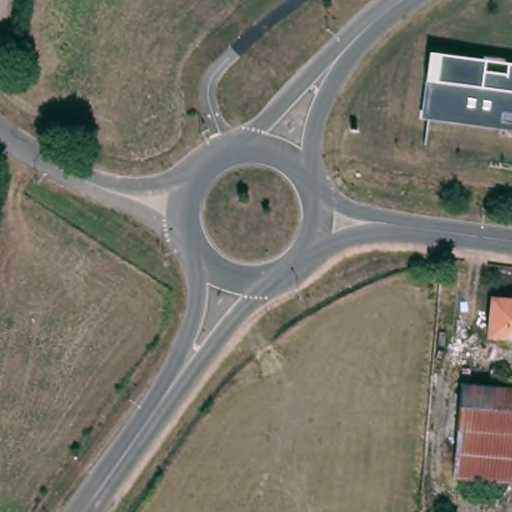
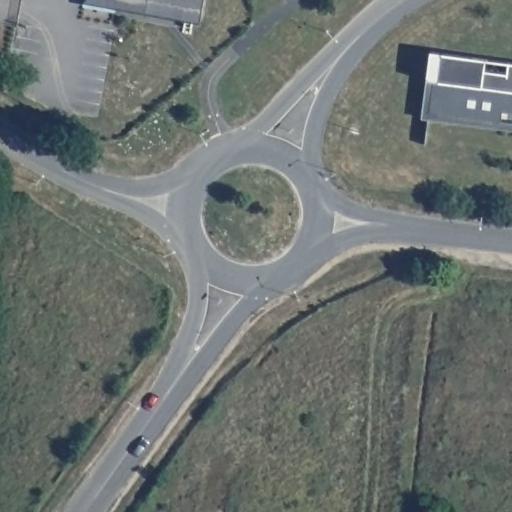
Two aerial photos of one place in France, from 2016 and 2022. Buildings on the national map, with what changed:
new [(107,0),(223,0),(220,23),(106,5),(107,0)]
unchanged [(428,53),(485,60),(512,63),(512,131),(421,119),(425,81),(428,53)]
demolished [(512,300),(512,337),(492,335),(496,298),(512,300)]
demolished [(465,383),(512,388),(512,483),(455,477),(465,383)]

